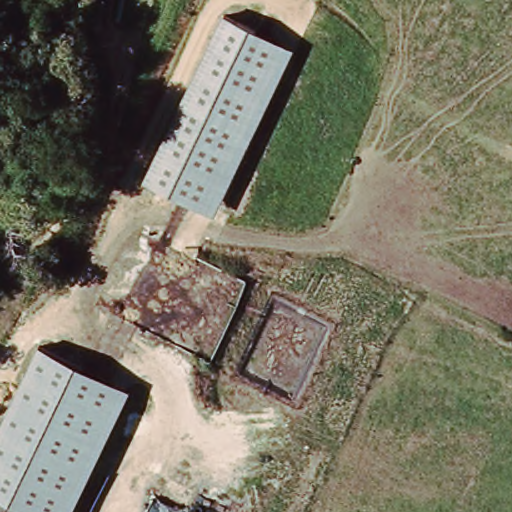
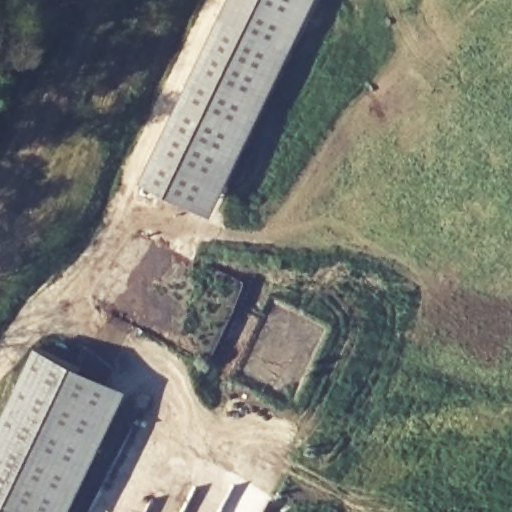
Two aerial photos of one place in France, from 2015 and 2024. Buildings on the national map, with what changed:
new [(222,14),(230,0),(317,0),(292,49),(222,14)]
unchanged [(222,14),(295,50),(217,215),(143,182),(222,14)]
unchanged [(43,341),(134,385),(72,512),(45,512),(33,506),(24,502),(19,512),(0,512),(0,429),(43,341)]
unchanged [(33,506),(45,512),(30,512),(33,506)]

